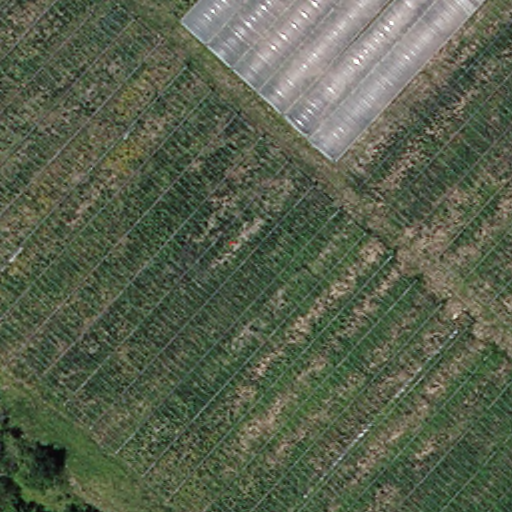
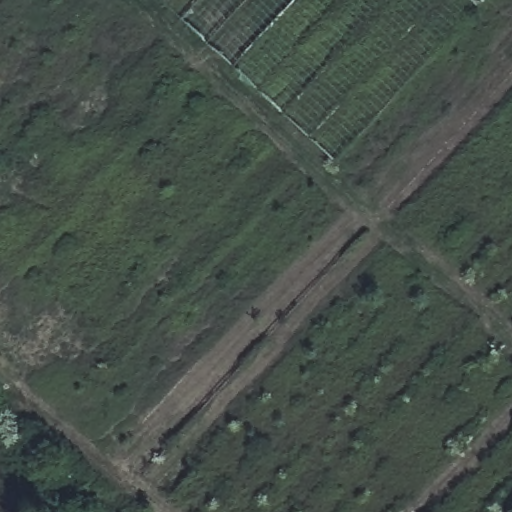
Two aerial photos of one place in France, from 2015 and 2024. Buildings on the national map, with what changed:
new [(181,22),(201,0),(484,0),(333,164),(181,22)]
demolished [(230,64),(288,0),(343,0),(259,91),(230,64)]

